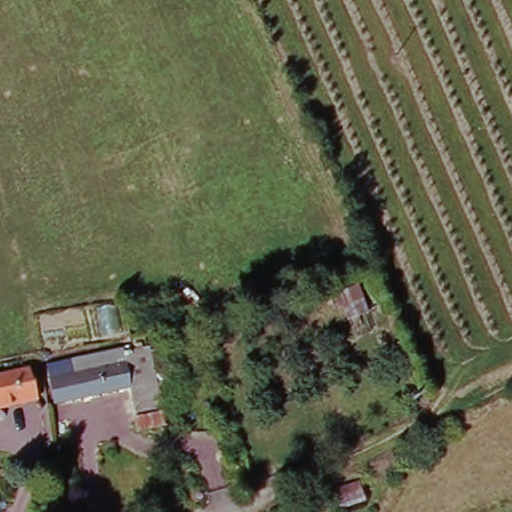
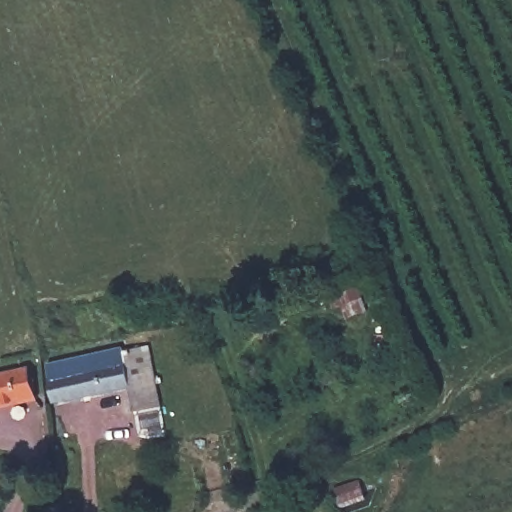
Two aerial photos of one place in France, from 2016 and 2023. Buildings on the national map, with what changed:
unchanged [(45,375),(123,357),(123,361),(150,355),(164,415),(138,420),(131,395),(54,412),(45,375)]
unchanged [(0,380),(30,372),(38,403),(0,412),(0,380)]

